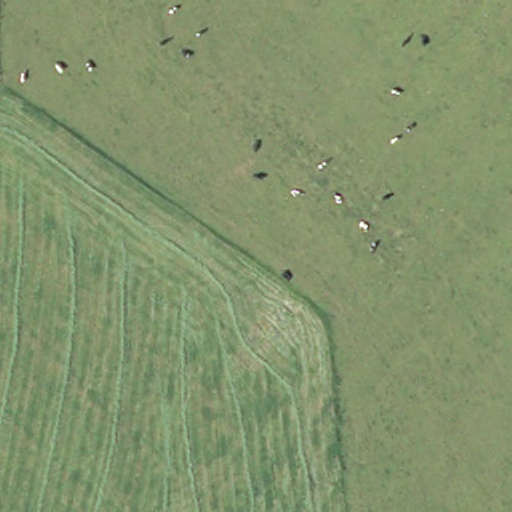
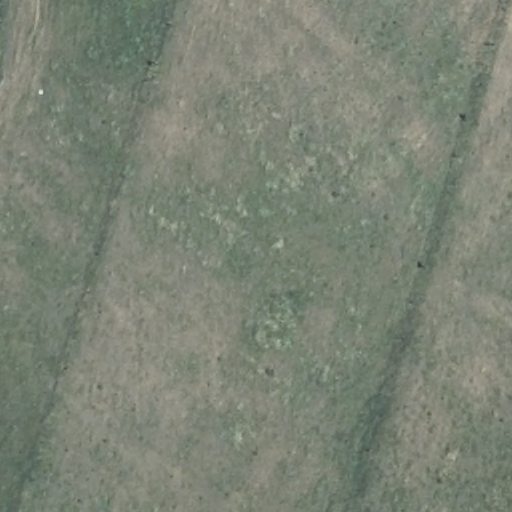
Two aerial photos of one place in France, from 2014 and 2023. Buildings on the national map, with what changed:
[]

